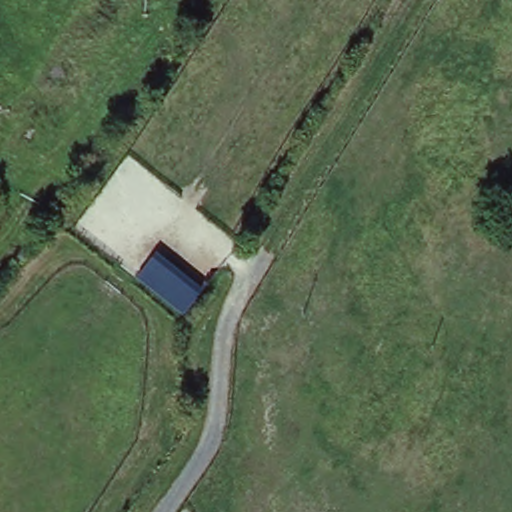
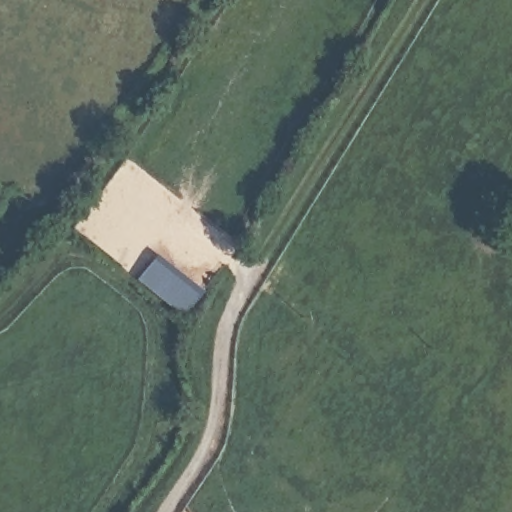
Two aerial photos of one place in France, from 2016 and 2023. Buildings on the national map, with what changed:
unchanged [(182,318),(136,280),(160,248),(204,285),(182,318)]

